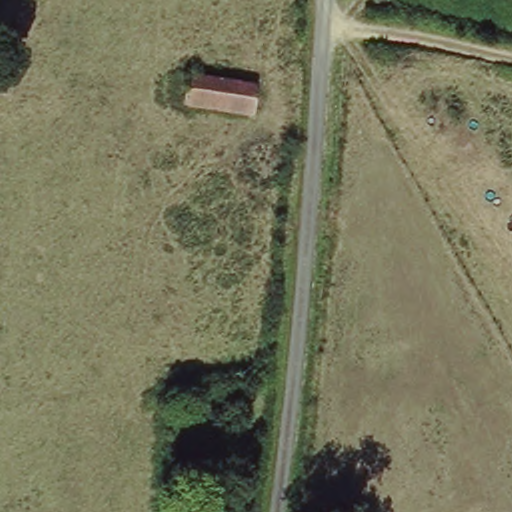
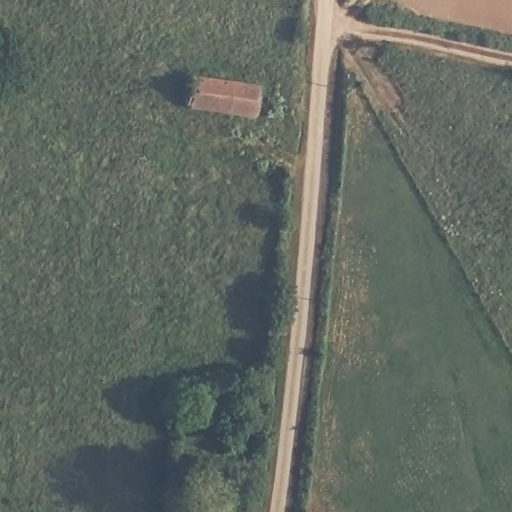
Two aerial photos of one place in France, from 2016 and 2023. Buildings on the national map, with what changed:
unchanged [(178,74),(254,90),(246,115),(176,102),(178,74)]

